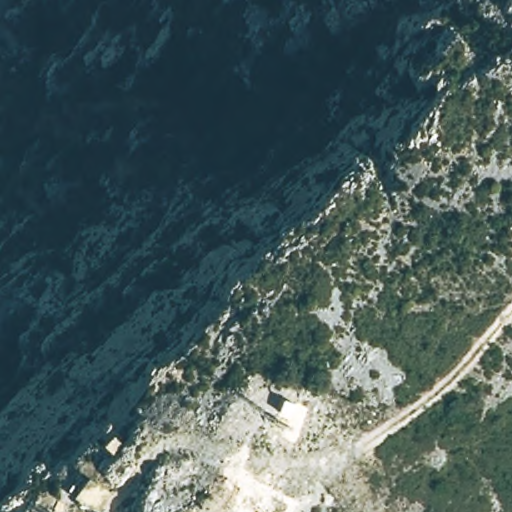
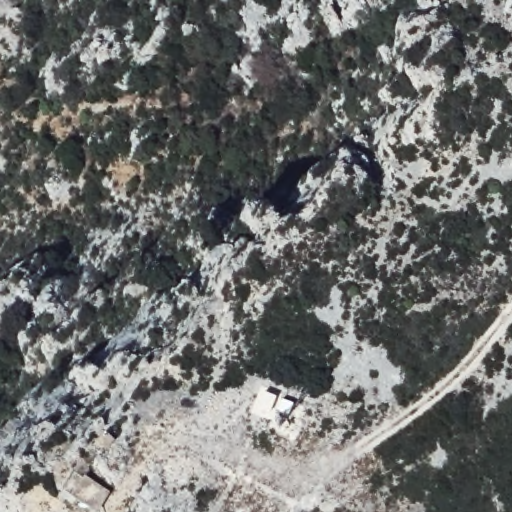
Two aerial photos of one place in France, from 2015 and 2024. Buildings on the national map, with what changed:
unchanged [(109,481),(94,507),(67,492),(81,471),(109,481)]

